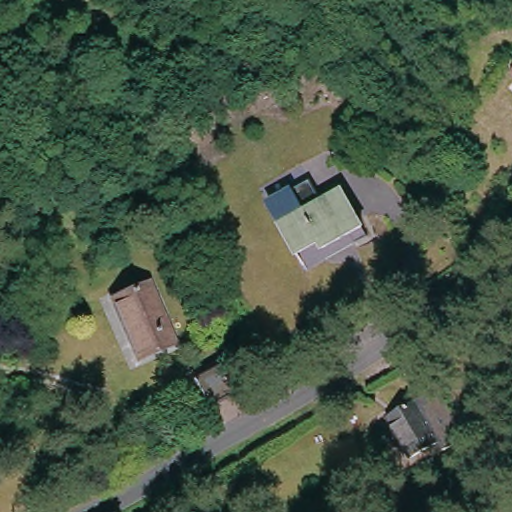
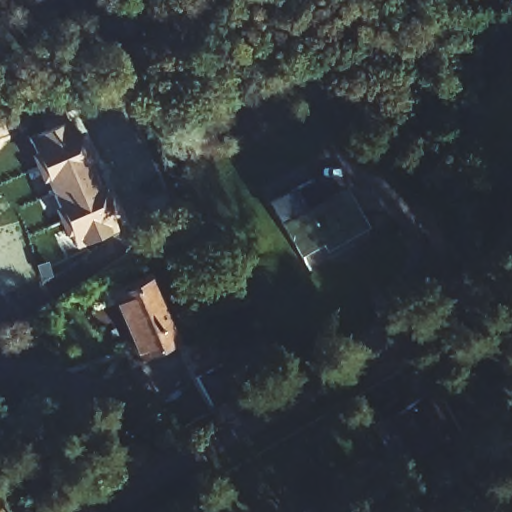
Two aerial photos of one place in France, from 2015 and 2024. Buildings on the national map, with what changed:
unchanged [(512,74),(510,72),(512,71),(512,74)]
new [(67,122),(80,132),(92,160),(89,162),(100,190),(105,188),(116,215),(117,231),(75,249),(27,139),(67,122)]
unchanged [(285,220),(302,252),(296,258),(280,225),(267,201),(311,180),(322,202),(285,220)]
unchanged [(364,228),(324,248),(322,242),(302,252),(285,220),(344,191),(364,228)]
unchanged [(141,350),(117,293),(146,279),(174,338),(141,350)]
unchanged [(232,389),(212,402),(195,377),(216,365),(232,389)]
unchanged [(512,380),(512,408),(500,393),(512,380)]
unchanged [(462,431),(447,441),(440,430),(412,445),(393,411),(433,385),(462,431)]

